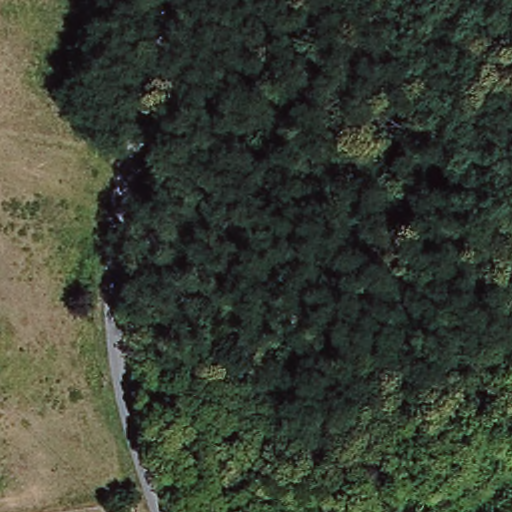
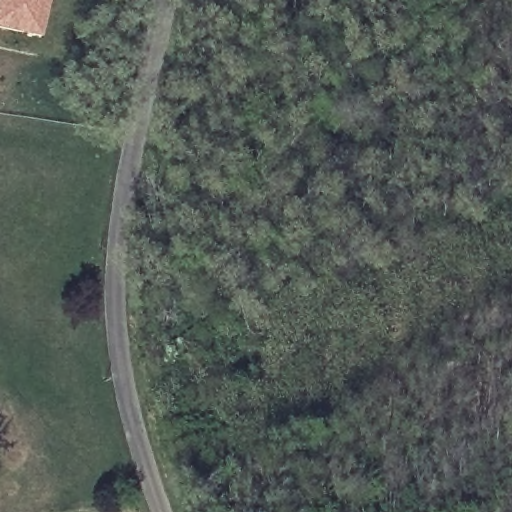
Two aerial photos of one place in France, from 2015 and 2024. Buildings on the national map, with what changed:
new [(7,5),(40,14),(43,0),(49,0),(41,35),(0,25),(0,0),(9,0),(7,5)]
new [(9,0),(43,0),(40,14),(7,5),(9,0)]

